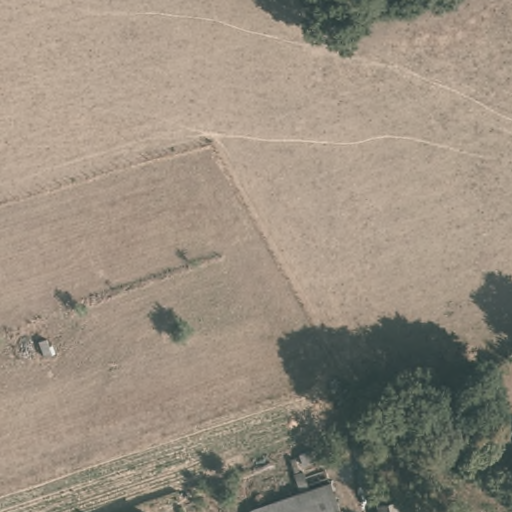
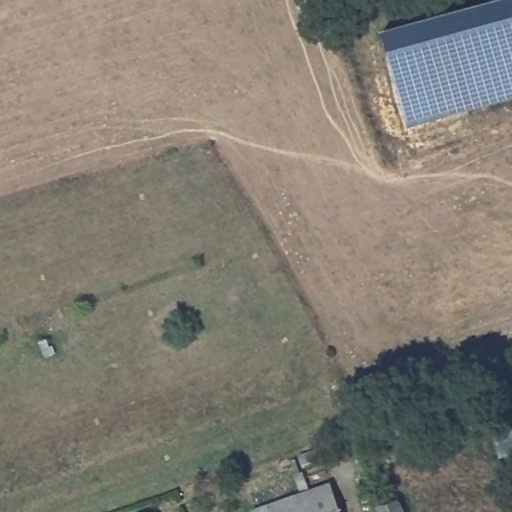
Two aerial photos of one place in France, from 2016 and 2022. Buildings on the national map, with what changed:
new [(512,0),(512,99),(409,127),(382,31),(496,0),(512,0)]
unchanged [(512,436),(512,457),(497,464),(491,445),(512,436)]
unchanged [(327,482),(339,512),(262,512),(260,506),(327,482)]
unchanged [(396,496),(400,512),(376,512),(373,501),(396,496)]

